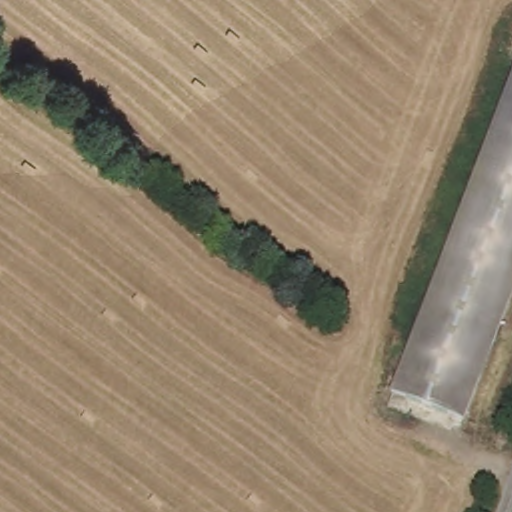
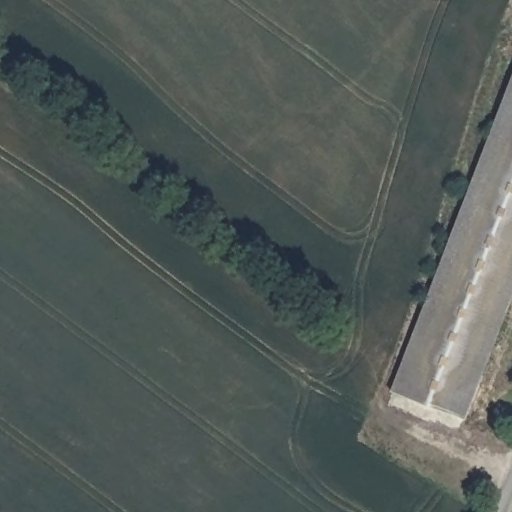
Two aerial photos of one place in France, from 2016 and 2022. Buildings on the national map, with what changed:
unchanged [(479,168),(512,83),(512,296),(465,421),(392,394),(438,275),(479,168)]

